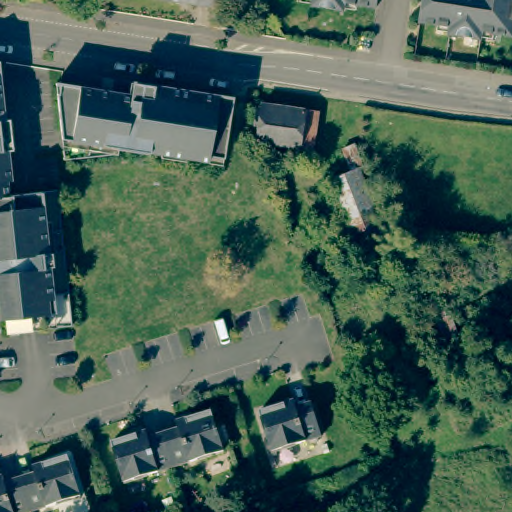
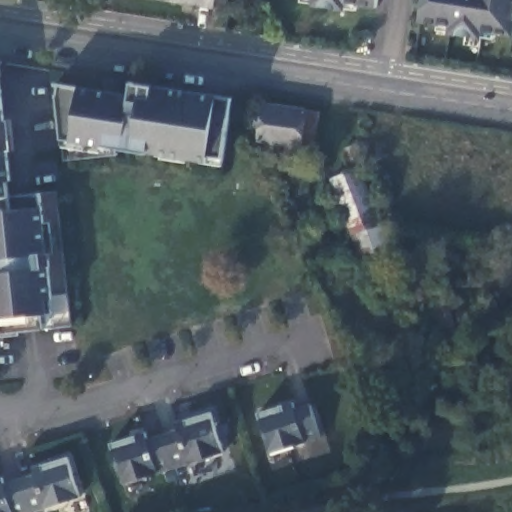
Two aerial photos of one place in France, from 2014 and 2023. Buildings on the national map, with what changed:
unchanged [(215,8),(171,0),(216,0),(215,8)]
unchanged [(376,7),(344,2),(343,9),(313,5),(313,0),(377,0),(376,7)]
unchanged [(485,33),(454,28),(455,21),(424,16),(426,0),(512,0),(512,29),(487,26),(485,33)]
unchanged [(226,156),(176,149),(176,147),(166,146),(166,147),(123,141),(121,148),(68,154),(60,87),(61,88),(63,80),(59,80),(59,78),(101,84),(100,92),(120,90),(124,88),(129,88),(135,88),(137,79),(175,85),(175,82),(236,90),(226,156)]
unchanged [(19,331),(19,334),(1,336),(1,333),(0,333),(0,96),(10,180),(5,180),(7,195),(57,189),(69,326),(19,331)]
unchanged [(263,106),(316,114),(312,150),(259,142),(263,106)]
unchanged [(350,165),(342,145),(354,140),(362,161),(359,163),(390,247),(362,258),(330,173),(350,165)]
unchanged [(438,362),(420,310),(446,302),(469,354),(438,362)]
unchanged [(259,414),(294,403),(296,410),(311,405),(322,439),(272,454),(259,414)]
unchanged [(225,454),(170,472),(125,486),(112,446),(147,435),(149,442),(160,438),(179,432),(177,425),(212,414),(225,454)]
unchanged [(82,500),(45,512),(0,512),(0,482),(4,481),(6,488),(18,484),(37,478),(34,471),(69,460),(82,500)]

